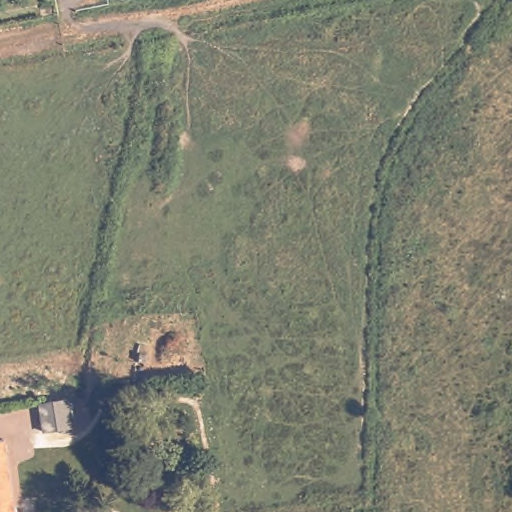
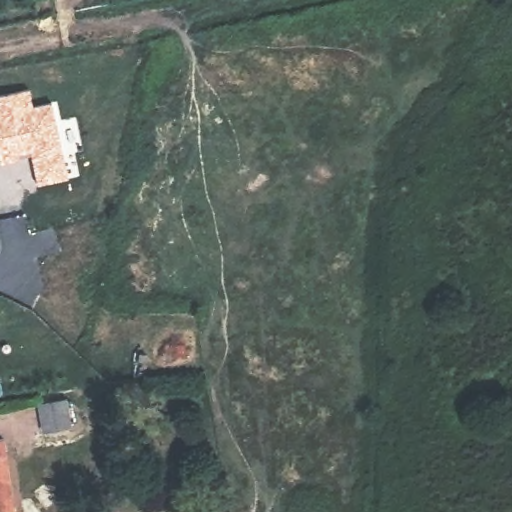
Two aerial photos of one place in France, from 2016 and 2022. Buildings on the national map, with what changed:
new [(32,109),(51,104),(68,180),(37,186),(31,159),(0,165),(0,95),(29,90),(32,109)]
unchanged [(66,396),(70,425),(44,430),(39,401),(66,396)]
unchanged [(16,512),(0,512),(0,439),(8,438),(16,512)]

